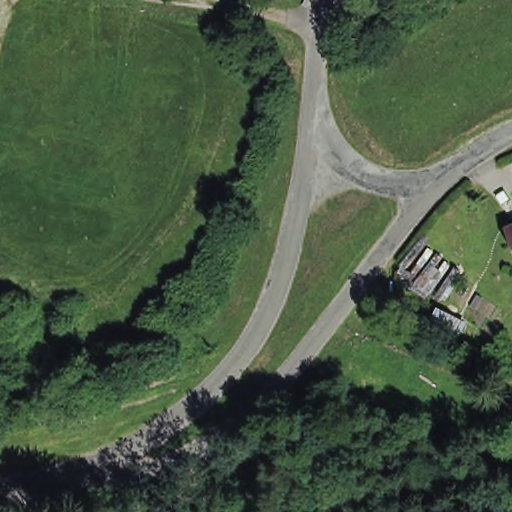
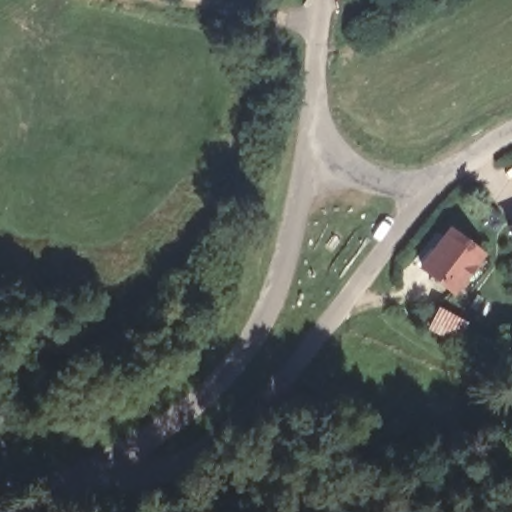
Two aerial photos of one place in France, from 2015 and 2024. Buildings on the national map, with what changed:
unchanged [(512,224),(512,253),(501,230),(512,224)]
new [(453,231),(482,254),(453,292),(424,269),(453,231)]
unchanged [(465,325),(456,342),(431,329),(440,312),(465,325)]

